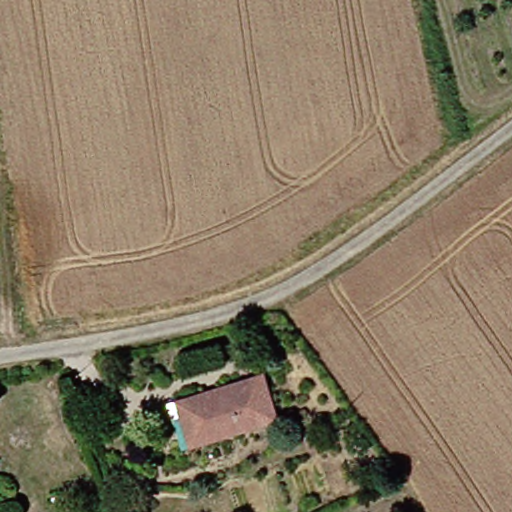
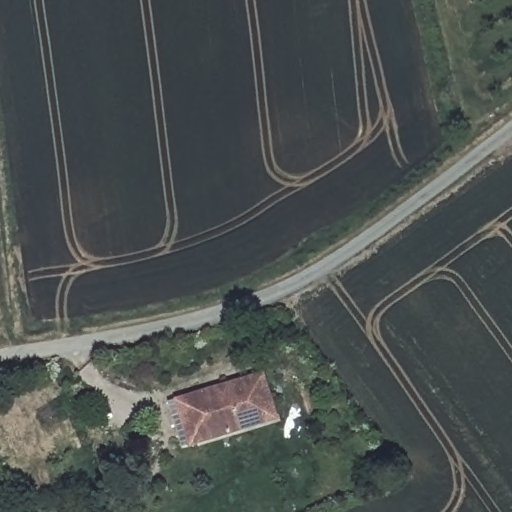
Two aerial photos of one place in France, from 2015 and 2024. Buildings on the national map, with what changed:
unchanged [(271,414),(236,428),(237,432),(180,451),(171,421),(175,419),(172,404),(258,372),(271,414)]

